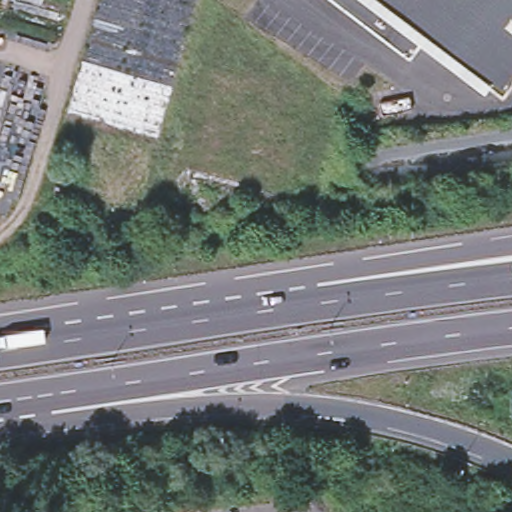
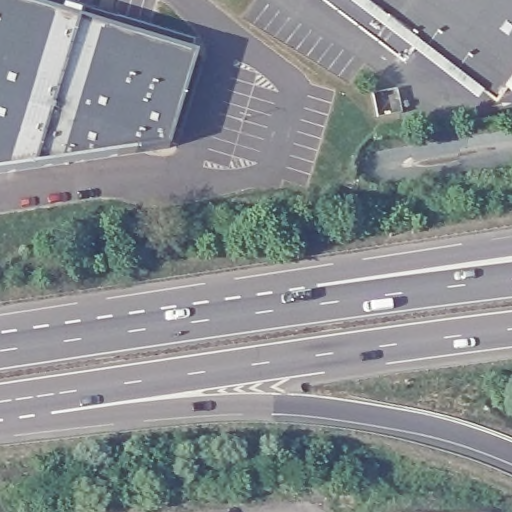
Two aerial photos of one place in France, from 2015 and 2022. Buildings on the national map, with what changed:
new [(168,147),(0,171),(0,0),(9,0),(195,56),(168,147)]
unchanged [(497,91),(418,32),(404,51),(335,0),(512,0),(512,72),(497,91)]
new [(397,89),(402,114),(377,119),(372,94),(397,89)]

